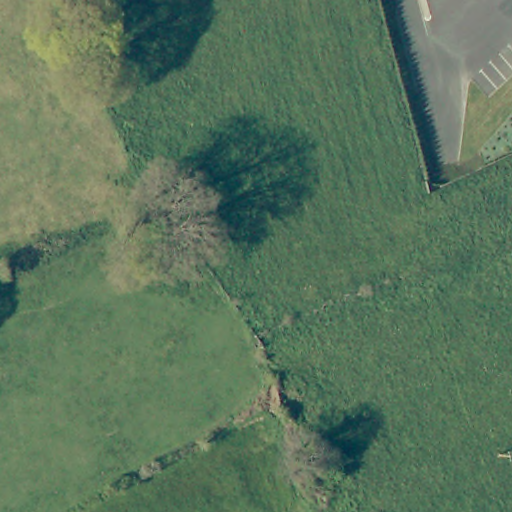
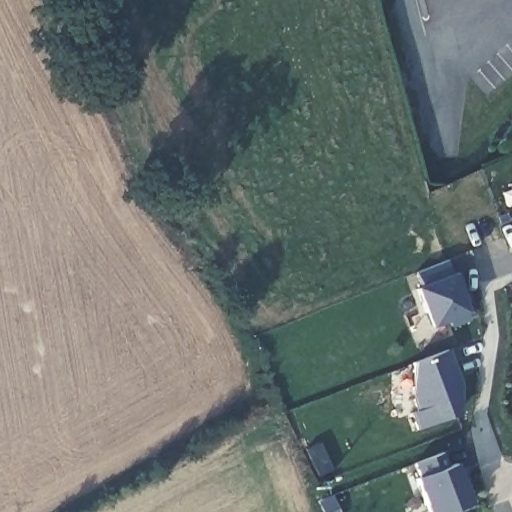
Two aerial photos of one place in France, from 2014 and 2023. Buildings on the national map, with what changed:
new [(458,274),(469,300),(464,302),(468,313),(431,327),(415,288),(422,286),(414,273),(447,260),(458,274)]
new [(464,386),(457,414),(417,429),(411,415),(417,411),(411,397),(414,362),(449,350),(464,386)]
new [(416,479),(421,477),(417,463),(447,452),(452,465),(458,463),(473,504),(452,512),(429,512),(416,479)]

